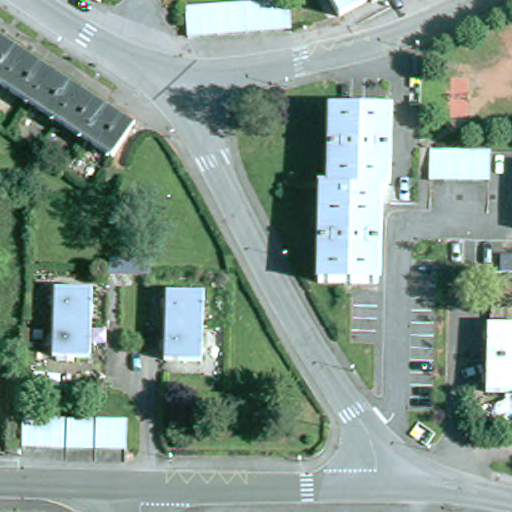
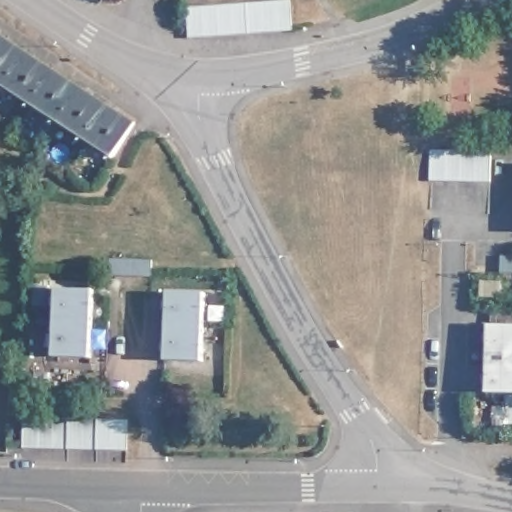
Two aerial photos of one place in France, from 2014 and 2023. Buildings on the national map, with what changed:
demolished [(332,0),(386,0),(343,23),(332,0)]
unchanged [(295,4),(297,35),(194,43),(192,13),(295,4)]
unchanged [(114,159),(0,84),(0,36),(135,124),(114,159)]
demolished [(396,114),(394,194),(386,194),(383,290),(323,287),(325,190),(333,190),(336,111),(396,114)]
unchanged [(493,154),(493,185),(435,184),(435,153),(493,154)]
unchanged [(157,263),(156,278),(115,278),(115,262),(157,263)]
unchanged [(512,278),(505,277),(505,262),(512,262),(512,278)]
unchanged [(59,360),(60,293),(97,294),(95,360),(59,360)]
unchanged [(173,295),(210,297),(208,363),(170,362),(173,295)]
unchanged [(512,398),(491,398),(491,330),(512,330),(512,398)]
unchanged [(85,421),(133,422),(132,452),(69,451),(28,450),(30,420),(85,421)]

